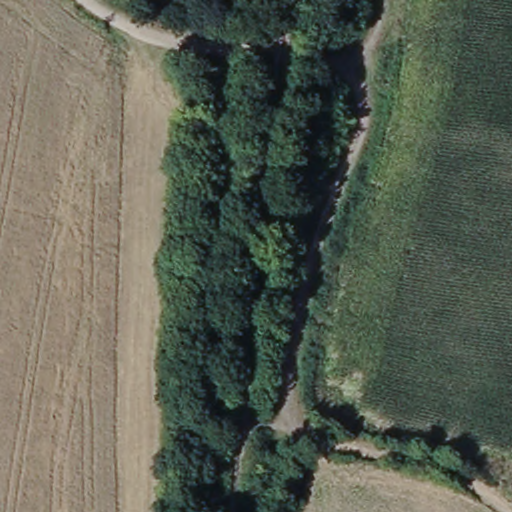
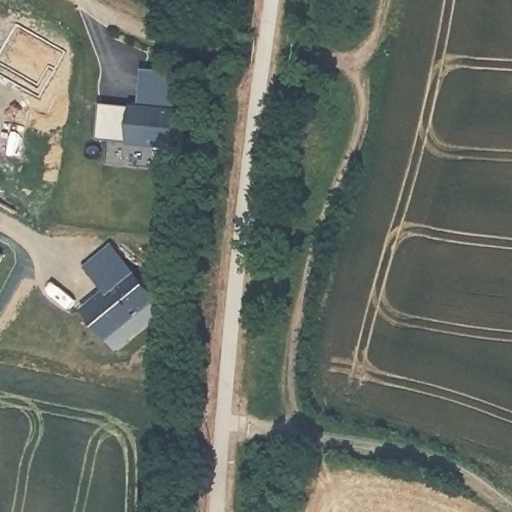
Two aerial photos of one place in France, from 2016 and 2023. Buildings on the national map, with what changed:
new [(142,70),(181,74),(177,112),(139,109),(142,70)]
new [(116,106),(122,107),(139,109),(177,112),(178,112),(174,149),(97,141),(101,105),(116,106)]
new [(157,301),(150,308),(160,322),(120,355),(107,341),(80,313),(103,293),(85,269),(114,246),(157,301)]

